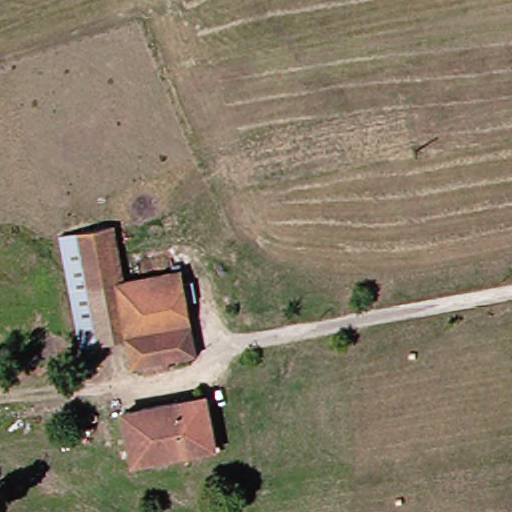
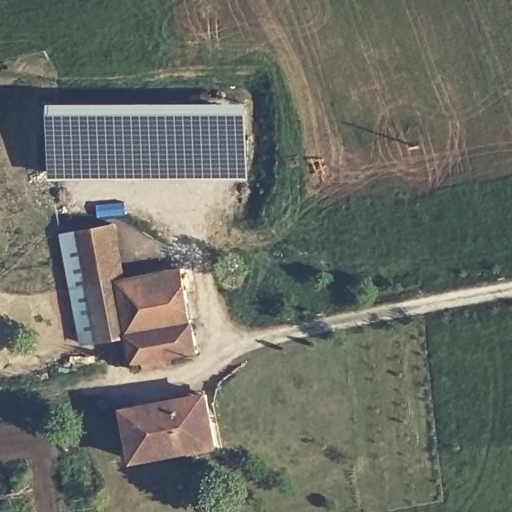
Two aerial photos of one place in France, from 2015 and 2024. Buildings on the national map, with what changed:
new [(248,178),(52,178),(52,102),(249,104),(248,178)]
unchanged [(88,345),(68,237),(116,228),(126,283),(120,284),(131,340),(88,345)]
unchanged [(120,284),(126,283),(187,274),(188,286),(198,285),(199,301),(190,302),(199,356),(172,360),(173,368),(146,372),(146,364),(135,365),(131,340),(120,284)]
unchanged [(142,460),(134,411),(215,399),(222,447),(142,460)]

